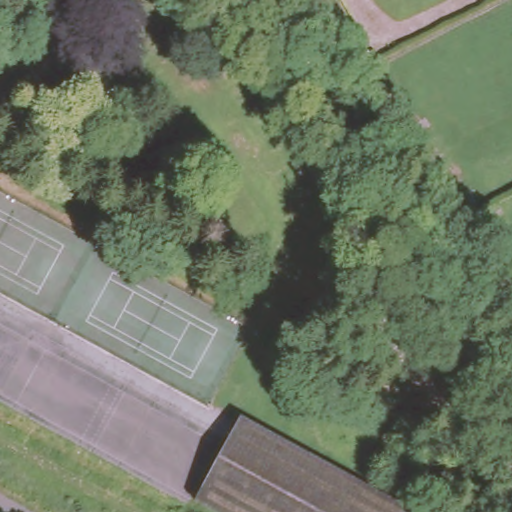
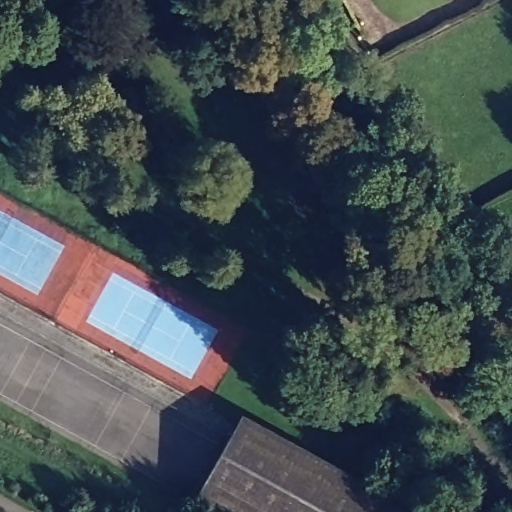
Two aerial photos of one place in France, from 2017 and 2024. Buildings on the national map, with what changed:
unchanged [(255,512),(210,487),(245,418),(414,512),(255,512)]

